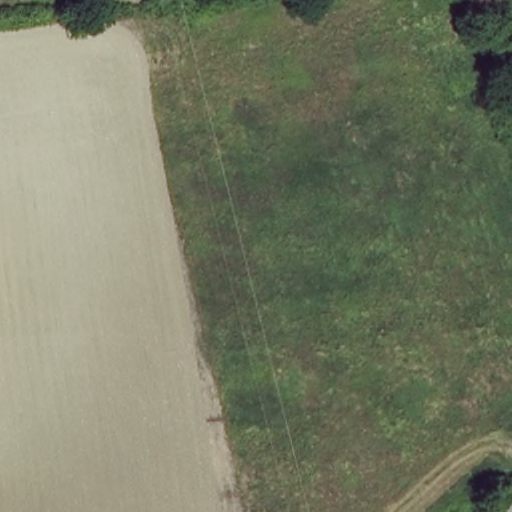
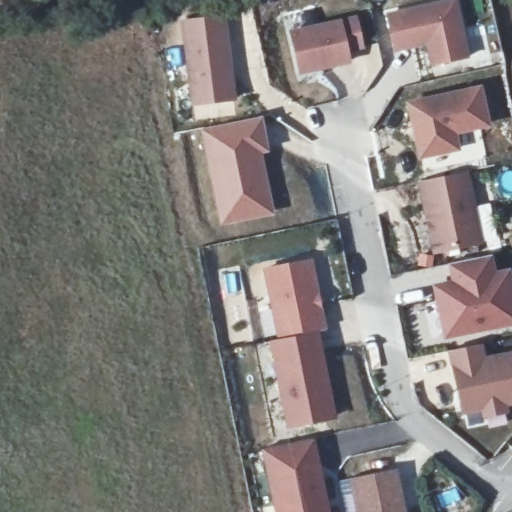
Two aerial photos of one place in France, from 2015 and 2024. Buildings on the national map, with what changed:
new [(394,52),(385,13),(442,0),(456,0),(470,57),(430,66),(427,44),(394,52)]
new [(348,52),(351,64),(299,75),(289,30),(342,17),(357,13),(365,48),(348,52)]
new [(232,17),(242,100),(194,104),(184,22),(232,17)]
new [(482,88),(490,131),(456,136),(459,154),(420,161),(410,99),(482,88)]
new [(262,114),(270,152),(263,154),(274,215),(220,225),(199,127),(262,114)]
new [(417,182),(467,171),(482,243),(432,254),(417,182)]
new [(492,274),(507,271),(512,299),(512,322),(453,334),(442,285),(454,282),(450,263),(489,255),(492,274)]
new [(323,332),(341,420),(292,430),(275,342),(323,332)]
new [(490,359),(512,357),(512,403),(505,404),(507,411),(489,414),(489,409),(460,412),(450,352),(489,347),(490,359)]
new [(316,442),(328,512),(276,512),(266,451),(316,442)]
new [(350,479),(397,469),(406,512),(357,512),(350,479)]

